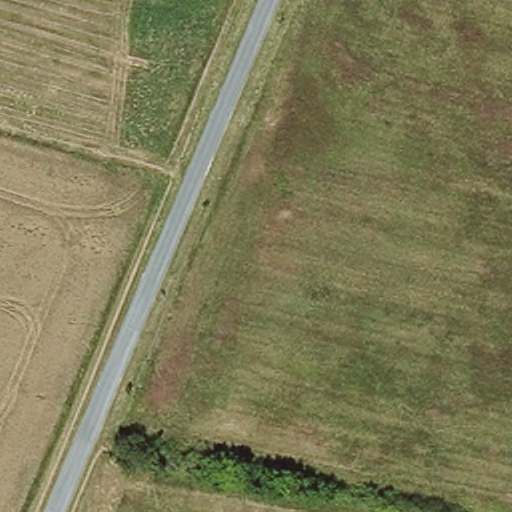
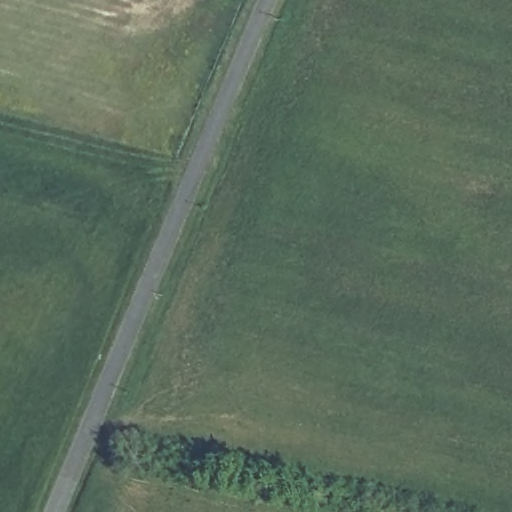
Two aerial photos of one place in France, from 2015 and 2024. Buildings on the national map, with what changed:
[]

